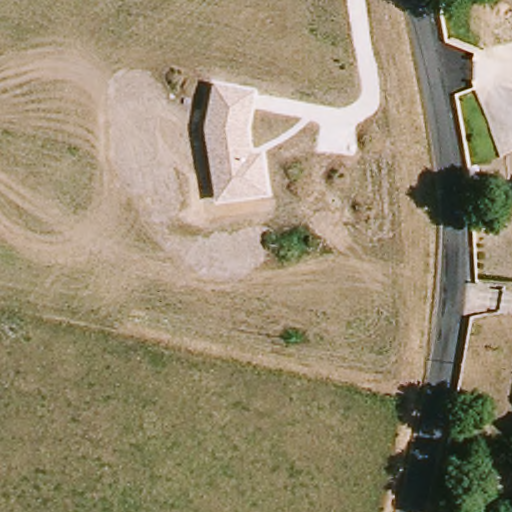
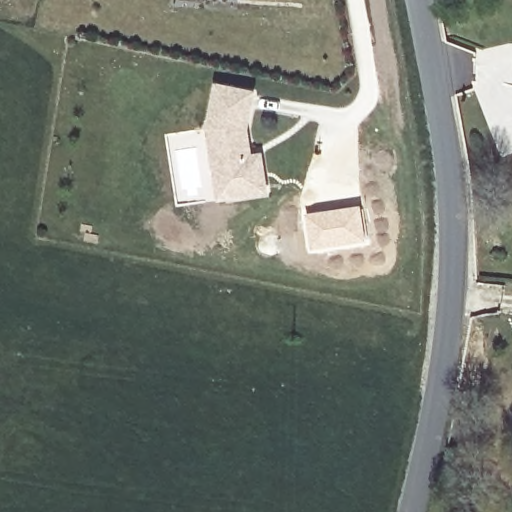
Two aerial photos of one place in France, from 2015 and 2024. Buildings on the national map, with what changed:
unchanged [(248,130),(251,154),(263,152),(269,194),(216,202),(205,127),(214,82),(256,92),(248,130)]
new [(360,205),(366,242),(308,252),(303,213),(360,205)]

